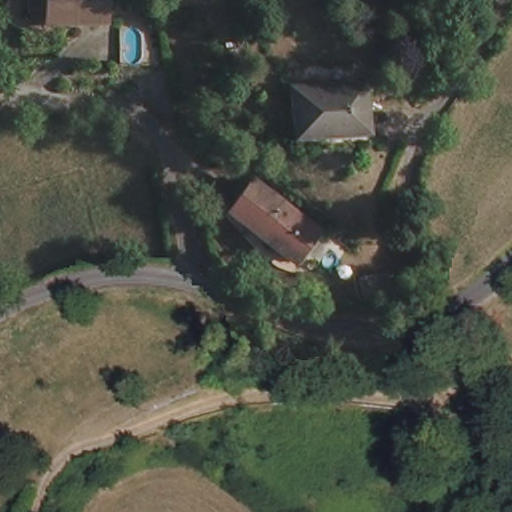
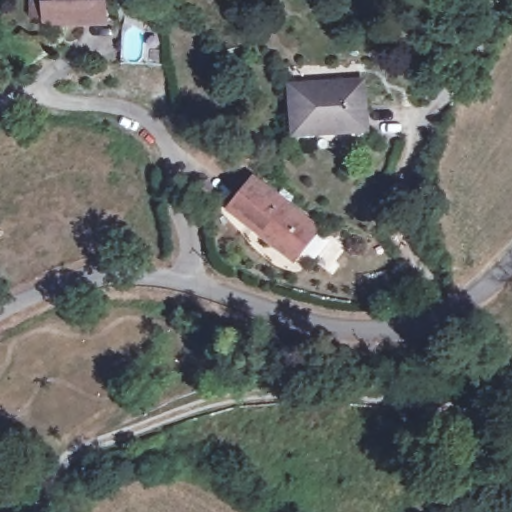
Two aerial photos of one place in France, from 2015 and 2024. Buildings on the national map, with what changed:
unchanged [(58,0),(107,0),(107,19),(57,16),(58,0)]
unchanged [(291,134),(291,124),(290,78),(360,77),(360,123),(360,134),(291,134)]
unchanged [(229,204),(255,176),(319,229),(294,258),(267,236),(271,231),(264,224),(259,229),(229,204)]

